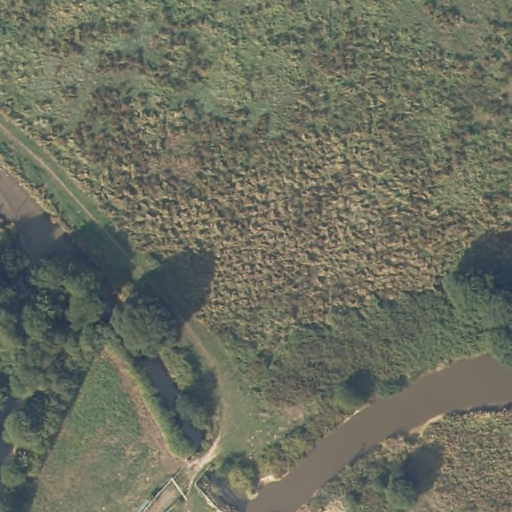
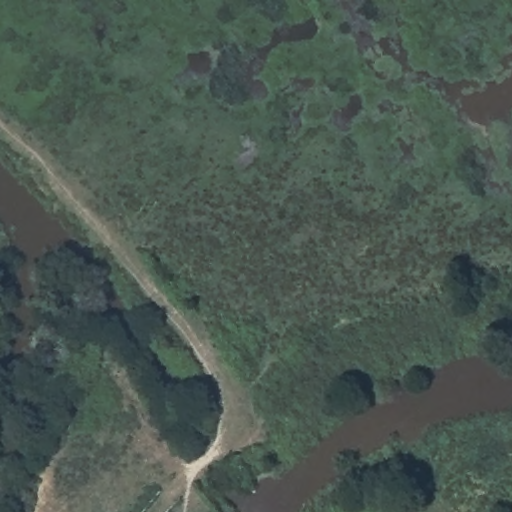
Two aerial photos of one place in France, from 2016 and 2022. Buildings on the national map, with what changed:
[]

